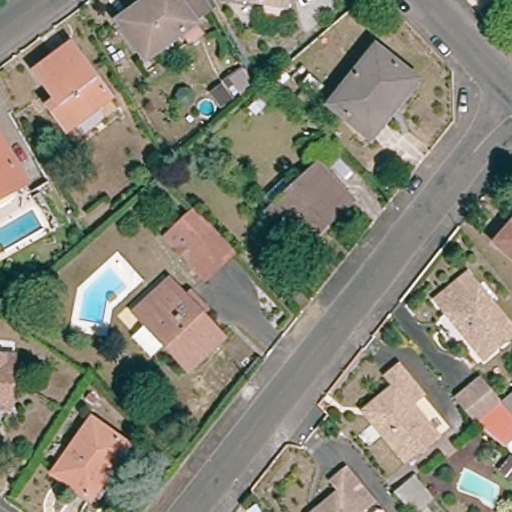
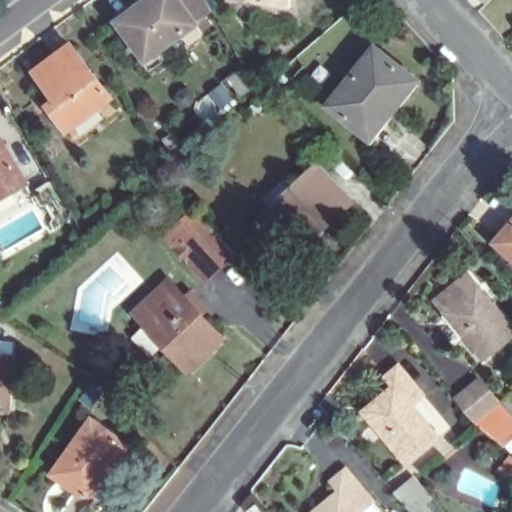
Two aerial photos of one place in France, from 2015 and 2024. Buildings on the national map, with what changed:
unchanged [(192,41),(185,31),(142,61),(115,25),(130,13),(147,0),(199,0),(206,12),(191,23),(192,25),(200,34),(192,41)]
unchanged [(287,7),(248,0),(289,0),(287,7)]
unchanged [(56,111),(64,106),(40,73),(76,46),(113,100),(70,130),(56,111)]
unchanged [(375,50),(414,80),(369,136),(330,107),(375,50)]
unchanged [(239,66),(254,85),(242,92),(227,75),(239,66)]
unchanged [(0,197),(0,147),(21,185),(0,197)]
unchanged [(296,245),(271,217),(276,213),(265,201),(287,182),(297,193),(320,171),(350,206),(326,229),(302,251),(296,245)]
unchanged [(176,245),(165,234),(194,206),(235,250),(212,271),(205,276),(176,245)]
unchanged [(512,224),(512,250),(500,239),(512,224)]
unchanged [(471,271),(512,322),(512,336),(479,362),(431,305),(471,271)]
unchanged [(152,297),(157,291),(167,281),(174,288),(221,340),(212,348),(189,371),(134,313),(152,297)]
unchanged [(0,360),(10,360),(7,399),(7,410),(0,410),(0,360)]
unchanged [(398,387),(391,378),(403,369),(425,397),(414,406),(440,439),(407,465),(368,420),(370,410),(398,387)]
unchanged [(501,422),(512,431),(512,444),(509,448),(477,423),(457,398),(480,381),(500,405),(512,395),(512,413),(501,422)]
unchanged [(91,423),(126,448),(90,501),(55,476),(91,423)]
unchanged [(367,502),(357,512),(311,512),(337,490),(330,480),(342,470),(367,502)]
unchanged [(410,481),(437,512),(407,512),(393,495),(410,481)]

